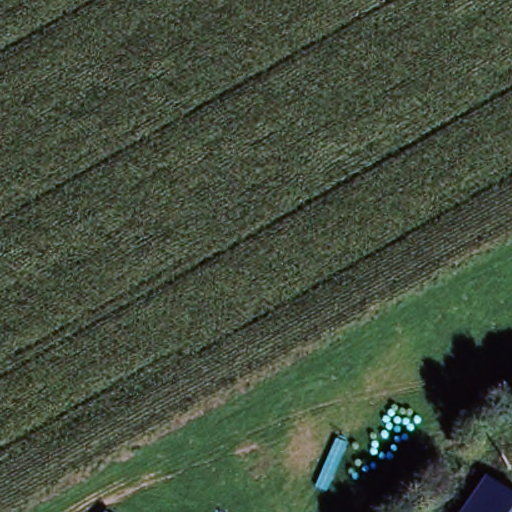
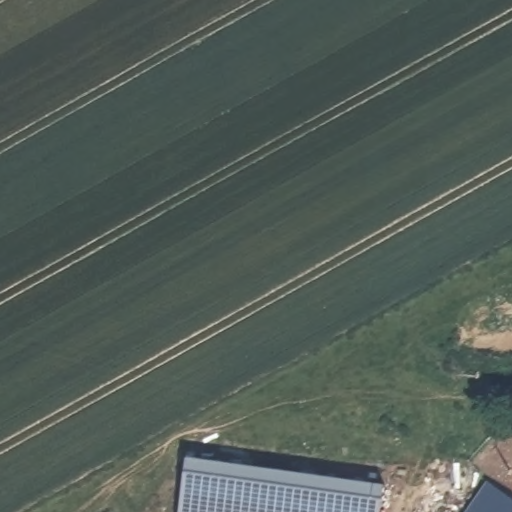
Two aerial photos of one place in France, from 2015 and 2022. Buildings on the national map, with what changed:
new [(192,457),(387,486),(383,512),(183,512),(192,457)]
unchanged [(485,480),(512,497),(512,512),(463,512),(485,480)]

